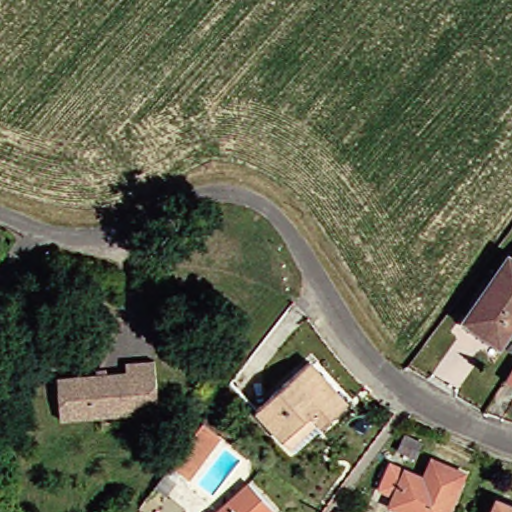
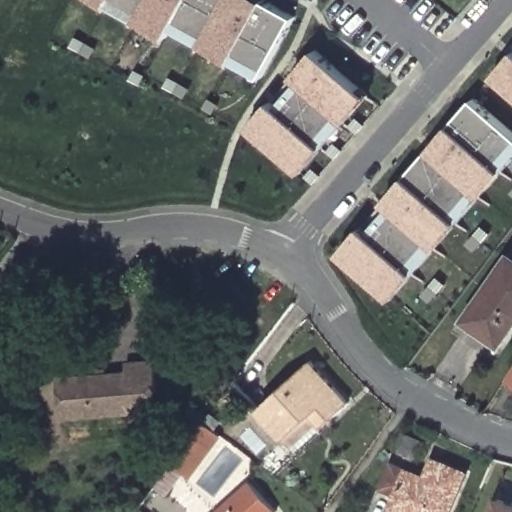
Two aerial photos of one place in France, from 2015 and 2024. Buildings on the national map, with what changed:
new [(174,29),(172,31),(168,39),(97,0),(265,0),(267,1),(266,2),(296,19),(267,72),(262,79),(174,29)]
new [(281,105),(297,86),(292,81),(297,75),(316,53),(361,92),(293,170),(249,130),(275,100),(281,105)]
new [(512,59),(512,96),(494,81),(512,59)]
new [(361,92),(363,89),(371,96),(301,176),(293,170),(361,92)]
new [(386,207),(381,202),(426,150),(452,121),(471,99),(512,135),(512,144),(382,293),(336,254),(355,232),(359,227),(365,232),(386,207)]
new [(512,157),(388,299),(382,293),(512,144),(512,157)]
unchanged [(475,317),(512,260),(512,339),(512,340),(475,317)]
unchanged [(146,413),(69,424),(62,380),(130,371),(129,361),(158,357),(163,387),(167,410),(146,413)]
unchanged [(295,441),(262,413),(306,361),(350,396),(332,420),(328,417),(305,449),(295,441)]
unchanged [(180,481),(171,493),(161,485),(178,461),(207,421),(222,431),(193,473),(189,470),(186,467),(177,479),(180,481)]
unchanged [(412,458),(388,448),(395,431),(418,441),(412,458)]
unchanged [(438,460),(467,472),(451,512),(412,512),(396,506),(400,496),(386,490),(394,467),(430,480),(438,460)]
unchanged [(276,512),(215,512),(252,482),(276,512)]
unchanged [(512,512),(495,512),(501,498),(512,502),(512,512)]
unchanged [(130,512),(117,512),(121,506),(130,512)]
unchanged [(147,512),(138,512),(141,508),(147,512)]

